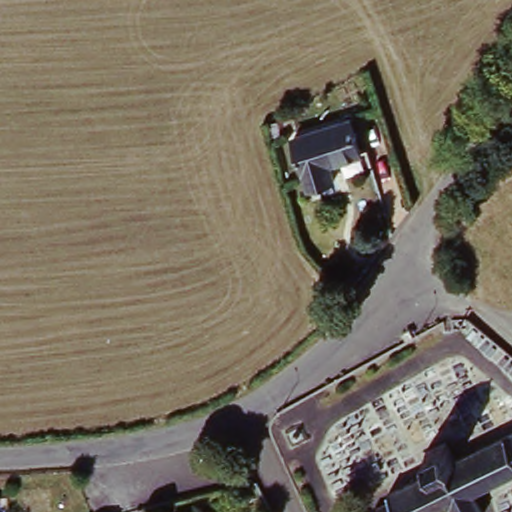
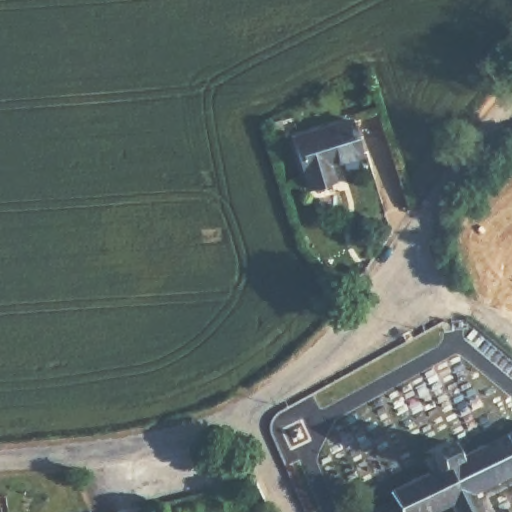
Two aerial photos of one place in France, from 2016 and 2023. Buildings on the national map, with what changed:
unchanged [(355,119),(365,152),(334,162),(338,177),(317,184),(302,137),(355,119)]
unchanged [(489,512),(460,512),(458,507),(449,512),(403,512),(393,495),(434,475),(428,462),(438,457),(435,452),(454,444),(462,460),(512,434),(512,480),(480,495),(489,512)]

